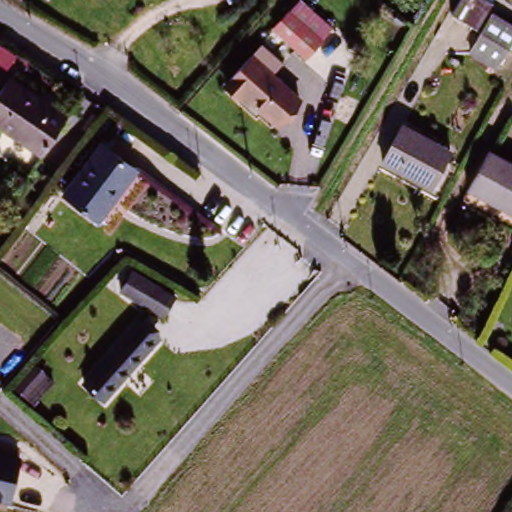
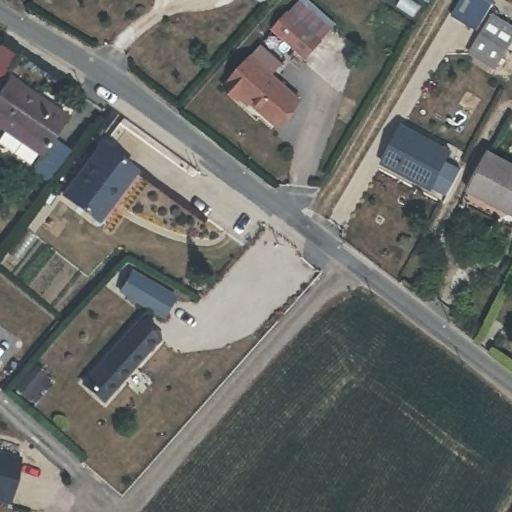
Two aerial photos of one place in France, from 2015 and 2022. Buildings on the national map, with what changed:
unchanged [(489,3),(474,30),(448,15),(455,0),(483,0),(489,3)]
unchanged [(267,40),(281,24),(292,10),(322,37),(315,49),(299,67),(267,40)]
unchanged [(512,25),(512,39),(496,67),(470,52),(492,15),(512,25)]
unchanged [(250,57),(299,99),(275,126),(242,97),(239,100),(226,87),(250,57)]
unchanged [(0,86),(0,64),(10,71),(0,86)]
unchanged [(0,132),(7,122),(0,117),(0,93),(14,74),(42,95),(69,115),(65,120),(45,150),(30,166),(0,142),(0,132)]
unchanged [(399,127),(447,154),(428,187),(380,162),(399,127)]
unchanged [(102,147),(137,173),(95,220),(64,195),(102,147)]
unchanged [(469,197),(488,161),(512,174),(512,221),(469,197)]
unchanged [(133,266),(172,288),(159,311),(120,288),(133,266)]
unchanged [(130,330),(152,348),(105,400),(85,384),(130,330)]
unchanged [(10,505),(0,503),(0,451),(20,456),(10,505)]

